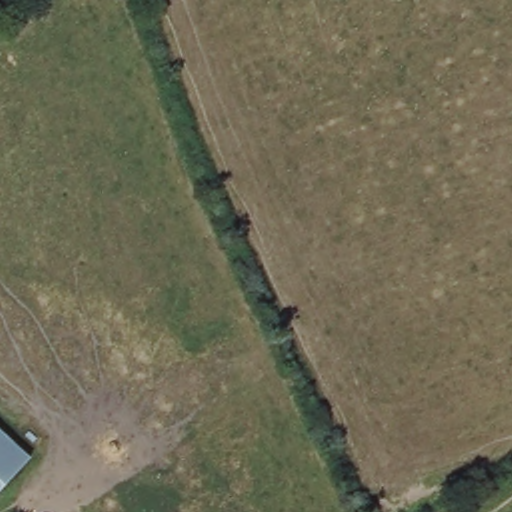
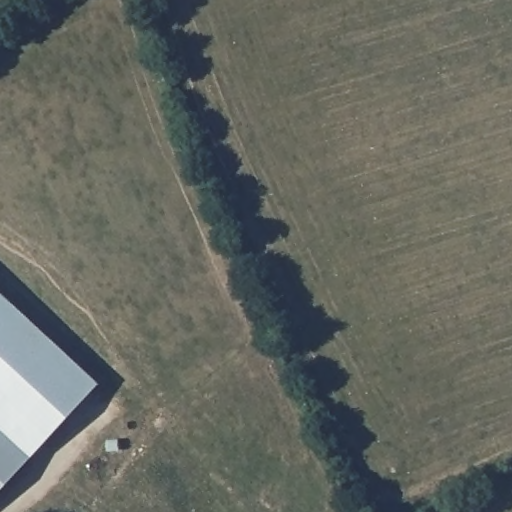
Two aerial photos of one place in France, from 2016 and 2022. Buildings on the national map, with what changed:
new [(0,429),(0,293),(99,383),(31,458),(0,429)]
unchanged [(31,458),(0,492),(0,429),(31,458)]

